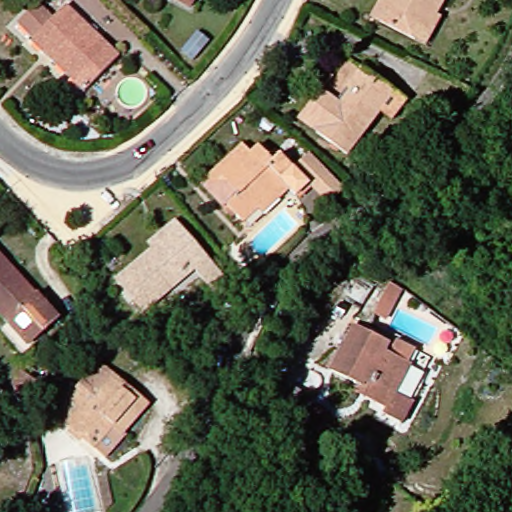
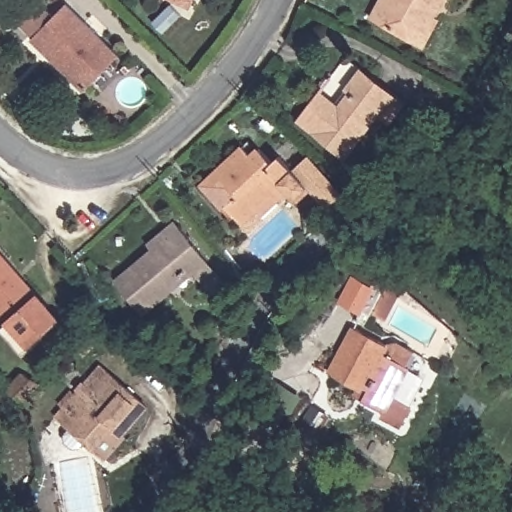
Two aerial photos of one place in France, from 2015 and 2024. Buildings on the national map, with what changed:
unchanged [(33,0),(43,0),(55,12),(32,36),(13,15),(33,0)]
unchanged [(202,8),(188,0),(207,0),(202,8)]
unchanged [(387,0),(449,0),(440,16),(444,18),(431,44),(389,21),(378,14),(387,0)]
unchanged [(34,38),(67,5),(117,54),(84,87),(50,54),(43,47),(34,38)]
unchanged [(397,119),(385,110),(353,153),(308,121),(328,93),(345,106),(358,89),(355,86),(366,70),(410,103),(397,119)]
unchanged [(253,211),(239,225),(222,208),(219,210),(199,189),(237,151),(246,159),(253,152),(268,167),(275,161),(289,174),(304,160),(337,193),(322,208),(303,189),(293,200),(286,194),(268,211),(260,218),(253,211)]
unchanged [(152,312),(125,279),(161,250),(155,243),(179,223),(186,230),(230,281),(219,290),(202,270),(170,297),(152,312)]
unchanged [(33,348),(0,311),(0,259),(58,325),(33,348)]
unchanged [(407,422),(391,414),(393,409),(370,396),(360,391),(363,383),(338,369),(360,326),(394,344),(419,358),(415,366),(400,395),(416,403),(407,422)]
unchanged [(145,403),(119,433),(124,438),(108,456),(59,415),(85,384),(83,382),(99,364),(145,403)]
unchanged [(22,406),(5,396),(22,378),(39,388),(22,406)]

